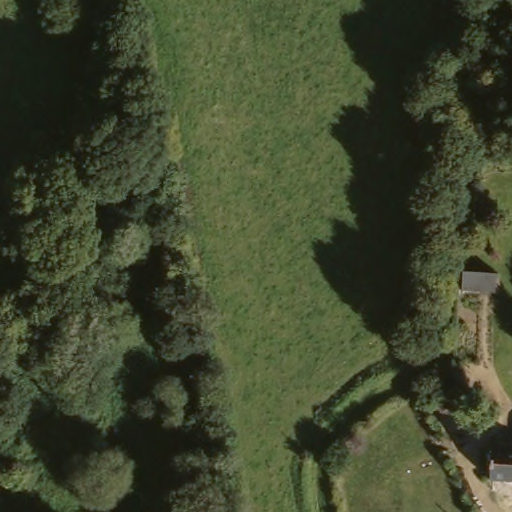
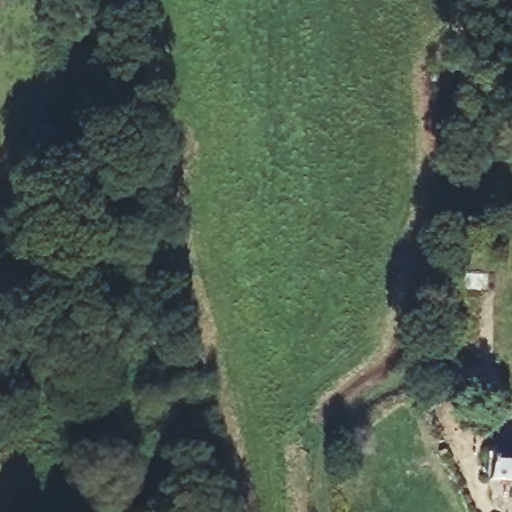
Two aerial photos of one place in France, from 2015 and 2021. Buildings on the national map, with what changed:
unchanged [(486,486),(488,466),(502,465),(512,465),(512,488),(486,486)]

